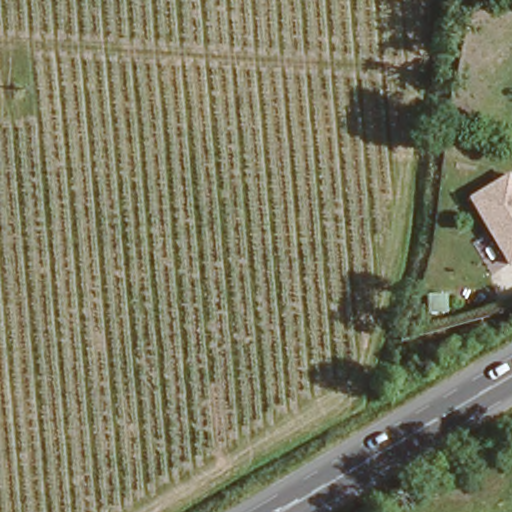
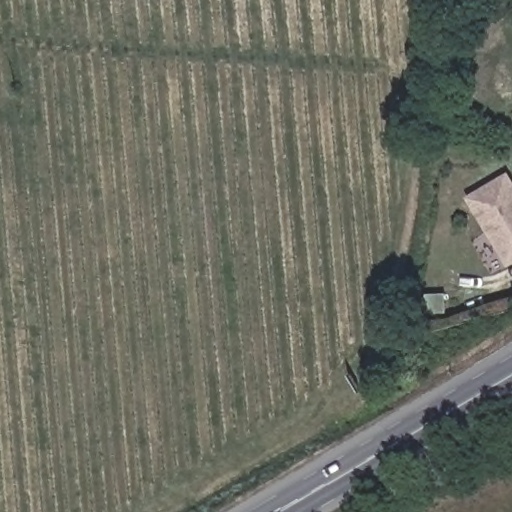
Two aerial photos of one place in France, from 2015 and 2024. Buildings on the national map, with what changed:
unchanged [(466,195),(508,170),(512,177),(512,261),(510,262),(466,195)]

